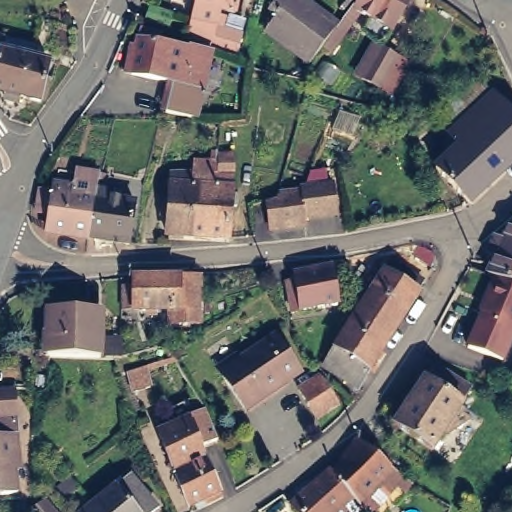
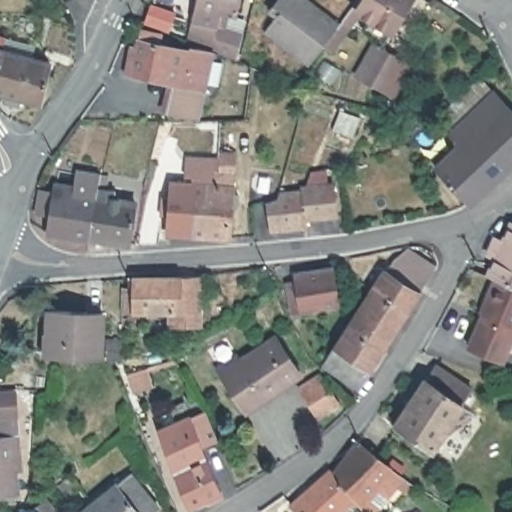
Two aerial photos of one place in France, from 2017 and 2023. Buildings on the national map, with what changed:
unchanged [(244,0),(241,20),(225,16),(221,32),(244,39),(238,64),(217,56),(194,46),(193,46),(203,0),(244,0)]
unchanged [(277,16),(269,10),(277,0),(303,0),(338,27),(309,65),(265,30),(277,16)]
unchanged [(355,12),(363,0),(410,0),(390,33),(355,12)]
unchanged [(150,26),(155,12),(178,20),(173,34),(150,26)]
unchanged [(166,40),(164,50),(194,55),(195,52),(217,56),(202,125),(170,118),(178,89),(135,80),(128,79),(134,54),(140,55),(144,35),(166,40)]
unchanged [(6,39),(4,51),(53,62),(44,102),(0,92),(0,38),(6,39)]
unchanged [(357,77),(375,46),(380,50),(390,55),(397,59),(379,90),(378,90),(363,81),(357,77)]
unchanged [(466,150),(459,143),(458,145),(455,141),(500,100),(512,112),(512,173),(473,209),(441,175),(466,150)]
unchanged [(223,160),(222,186),(211,185),(210,199),(199,199),(196,237),(172,236),(173,217),(165,216),(166,200),(174,200),(176,183),(196,184),(198,160),(215,161),(215,153),(223,153),(223,160)]
unchanged [(199,199),(210,199),(211,185),(222,186),(223,160),(236,160),(236,187),(238,187),(237,197),(242,197),(241,207),(236,207),(233,240),(196,237),(199,199)]
unchanged [(102,186),(93,240),(52,234),(55,215),(41,212),(44,191),(59,193),(60,186),(78,188),(80,175),(85,170),(105,174),(105,175),(102,186)]
unchanged [(112,177),(109,190),(119,191),(117,200),(140,204),(134,245),(93,240),(102,186),(105,175),(112,177)]
unchanged [(277,207),(286,204),(287,200),(311,197),(311,195),(343,190),(347,220),(315,225),(317,231),(281,235),(277,207)]
unchanged [(512,229),(512,283),(504,280),(502,279),(491,275),(499,256),(493,255),(498,239),(507,242),(512,229)]
unchanged [(384,276),(386,278),(392,269),(406,277),(423,288),(417,296),(419,298),(406,318),(371,297),(384,276)]
unchanged [(342,305),(297,312),(292,283),(301,282),(301,275),(337,270),(342,305)]
unchanged [(512,283),(512,350),(507,362),(472,348),(502,279),(504,280),(512,283)]
unchanged [(153,320),(152,314),(137,313),(137,315),(127,315),(127,293),(138,293),(138,285),(154,283),(204,283),(203,330),(175,330),(173,314),(159,314),(159,320),(153,320)]
unchanged [(348,333),(371,297),(406,318),(382,355),(348,333)]
unchanged [(50,357),(50,356),(46,356),(49,312),(102,313),(101,360),(50,357)]
unchanged [(357,393),(324,371),(348,333),(382,355),(357,393)]
unchanged [(305,374),(251,410),(227,374),(222,367),(240,355),(245,362),(280,338),(305,374)]
unchanged [(146,375),(129,380),(127,375),(126,375),(122,362),(141,357),(146,375)]
unchanged [(425,388),(426,390),(436,375),(472,399),(462,414),(463,415),(431,461),(394,435),(425,388)]
unchanged [(333,388),(344,405),(323,420),(303,390),(322,377),(333,388)]
unchanged [(196,506),(189,510),(158,432),(188,418),(206,413),(218,441),(217,442),(202,448),(223,500),(199,512),(198,512),(196,506)]
unchanged [(17,417),(20,456),(15,457),(18,494),(0,496),(0,419),(17,417)]
unchanged [(302,490),(305,493),(328,473),(336,472),(357,442),(358,442),(359,441),(405,480),(389,498),(376,487),(360,506),(353,498),(337,512),(297,512),(291,505),(300,497),(297,495),(302,490)]
unchanged [(159,512),(90,512),(136,474),(163,508),(159,512)]
unchanged [(78,487),(65,498),(57,488),(69,477),(78,487)]
unchanged [(56,512),(31,512),(46,500),(56,512)]

